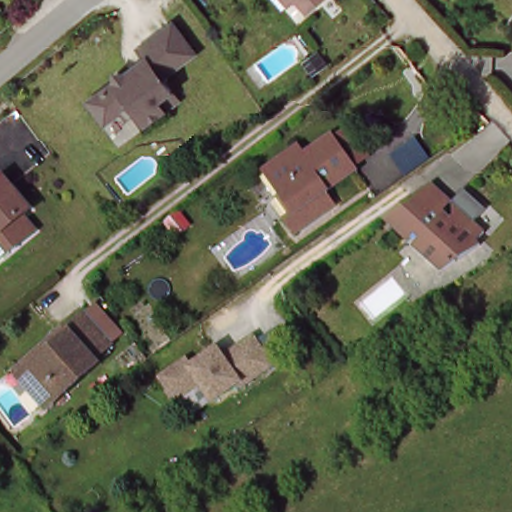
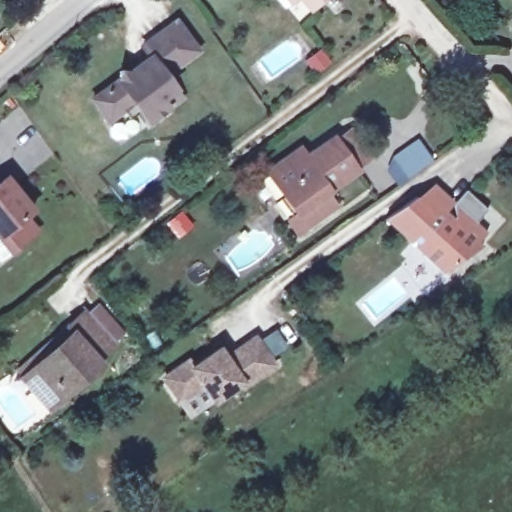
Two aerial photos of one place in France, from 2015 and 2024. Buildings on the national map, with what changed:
unchanged [(292,0),(289,4),(285,0),(292,0)]
unchanged [(301,0),(315,0),(307,7),(301,0)]
unchanged [(88,95),(145,52),(137,42),(159,27),(172,17),(194,46),(181,56),(160,71),(120,106),(106,118),(88,95)]
unchanged [(177,94),(146,119),(137,108),(127,116),(120,106),(160,71),(177,94)]
unchanged [(362,164),(347,175),(351,179),(312,205),(321,216),(291,237),(281,224),(290,217),(261,177),(282,163),(302,162),(326,145),(331,150),(345,141),(362,164)]
unchanged [(19,217),(30,230),(0,254),(0,177),(26,210),(19,217)]
unchanged [(410,194),(411,194),(435,216),(440,210),(452,221),(476,244),(439,268),(381,216),(410,194)]
unchanged [(105,352),(85,369),(91,375),(45,416),(17,385),(62,345),(54,337),(75,319),(105,352)]
unchanged [(185,359),(190,366),(215,347),(222,356),(251,336),(270,362),(240,383),(237,380),(211,398),(198,381),(175,397),(160,376),(185,359)]

